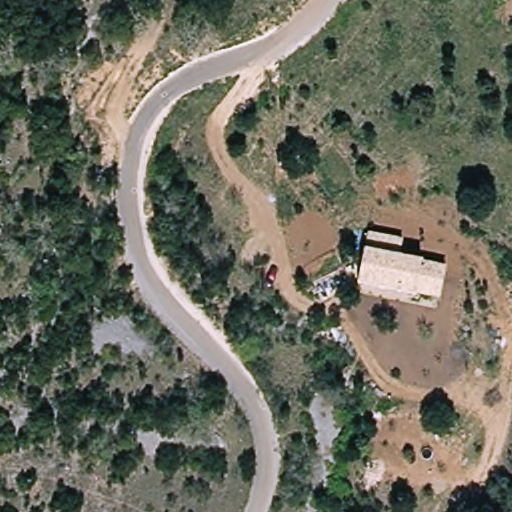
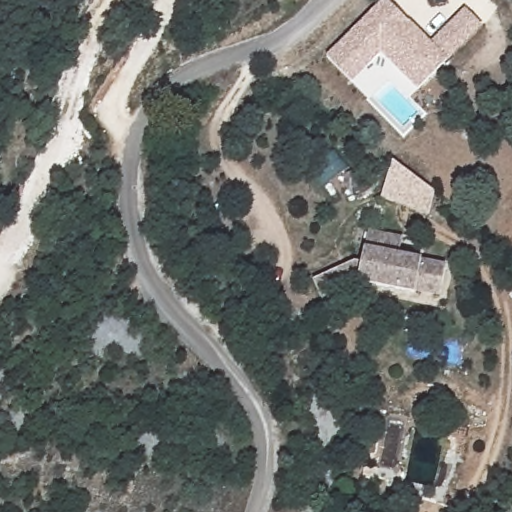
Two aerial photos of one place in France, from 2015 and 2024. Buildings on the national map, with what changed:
new [(449,62),(419,91),(381,55),(353,83),(328,57),(384,0),(388,0),(432,44),(466,9),(483,28),(449,62)]
new [(381,198),(393,162),(436,194),(430,216),(381,198)]
unchanged [(405,239),(403,255),(446,265),(440,298),(416,287),(415,297),(357,286),(365,250),(369,232),(405,239)]

